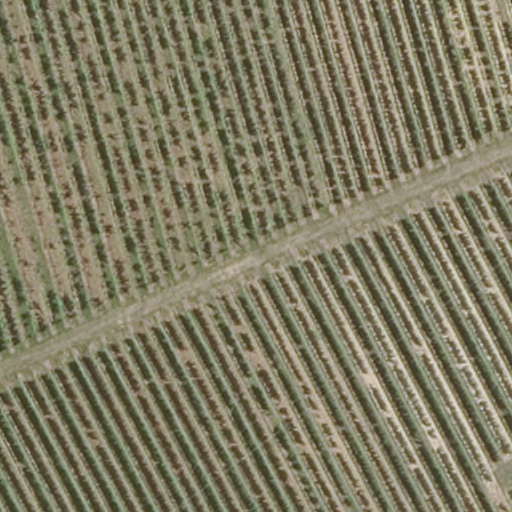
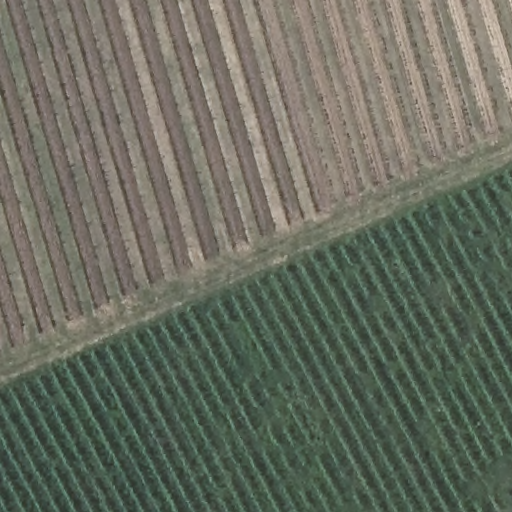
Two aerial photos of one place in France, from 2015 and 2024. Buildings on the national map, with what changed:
[]

